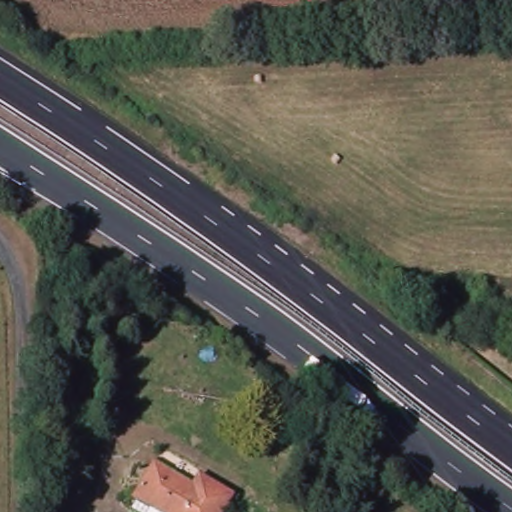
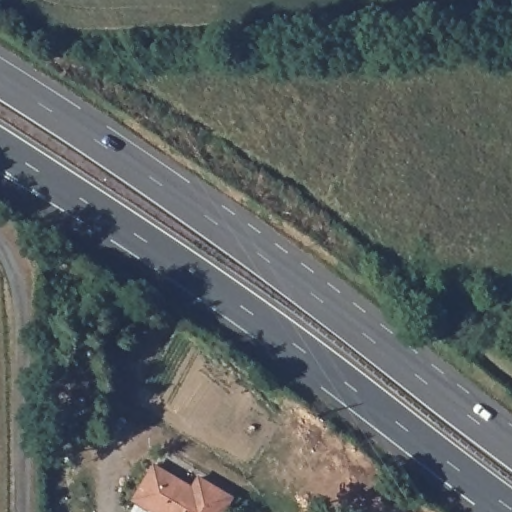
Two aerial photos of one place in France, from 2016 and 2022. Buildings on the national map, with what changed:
unchanged [(152,509),(150,512),(133,512),(139,500),(137,499),(156,470),(194,492),(200,481),(232,501),(226,512),(157,512),(152,509)]

